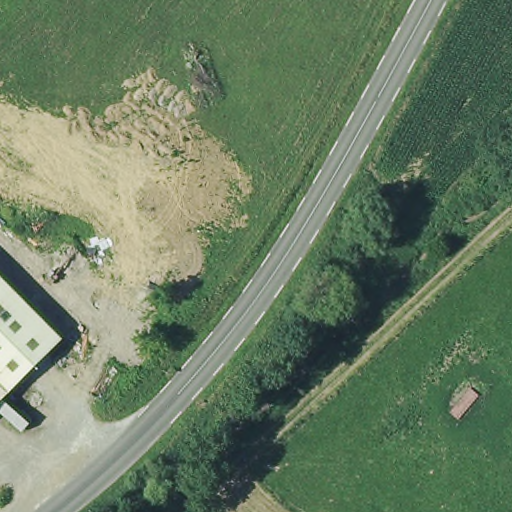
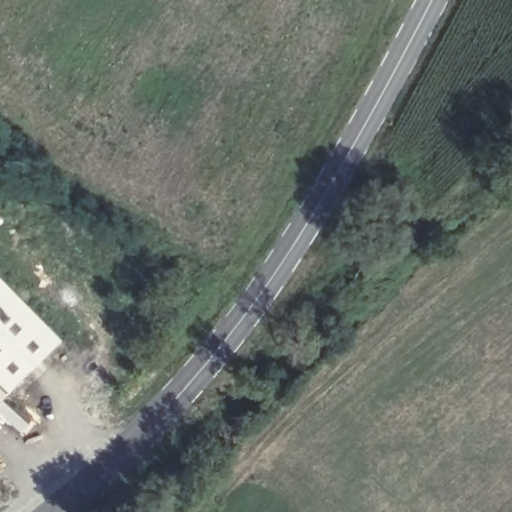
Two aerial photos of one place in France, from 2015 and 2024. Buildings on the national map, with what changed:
unchanged [(0,279),(65,345),(10,398),(0,388),(0,279)]
unchanged [(0,408),(0,388),(10,398),(0,408)]

